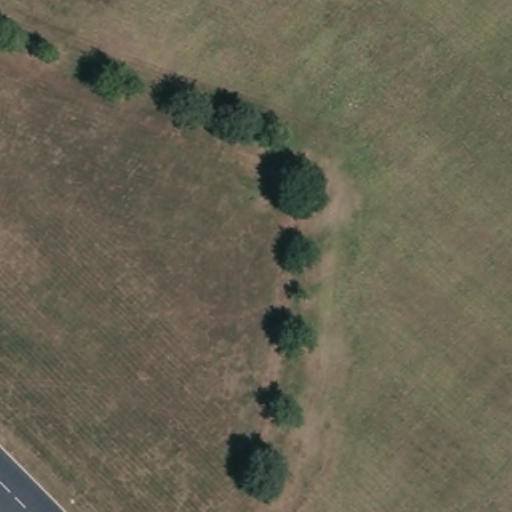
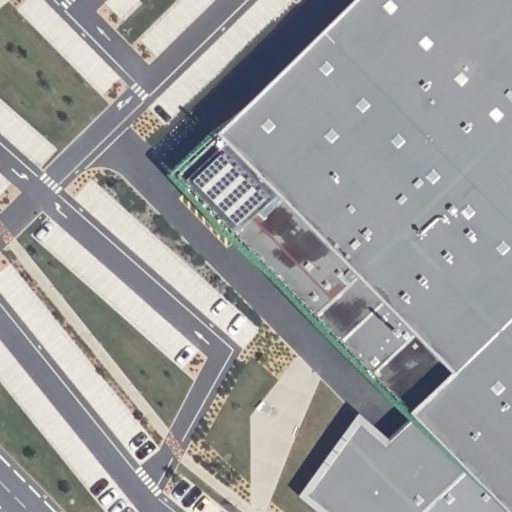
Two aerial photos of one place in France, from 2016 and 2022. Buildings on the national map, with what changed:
new [(512,0),(512,512),(317,512),(299,498),(359,416),(389,442),(415,418),(412,416),(173,180),(221,138),(361,0),(512,0)]

